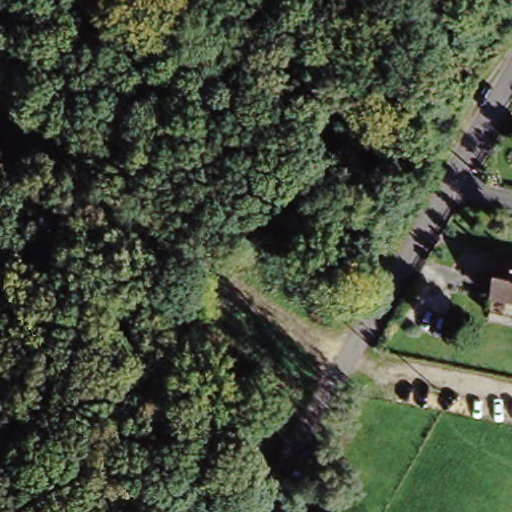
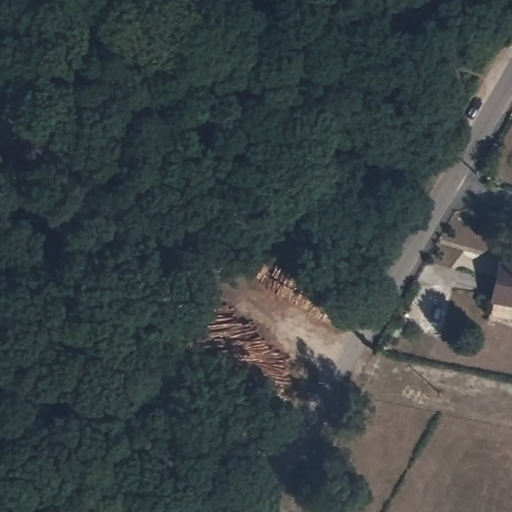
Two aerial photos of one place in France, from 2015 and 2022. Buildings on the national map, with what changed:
unchanged [(489,302),(497,270),(512,273),(512,307),(489,302)]

